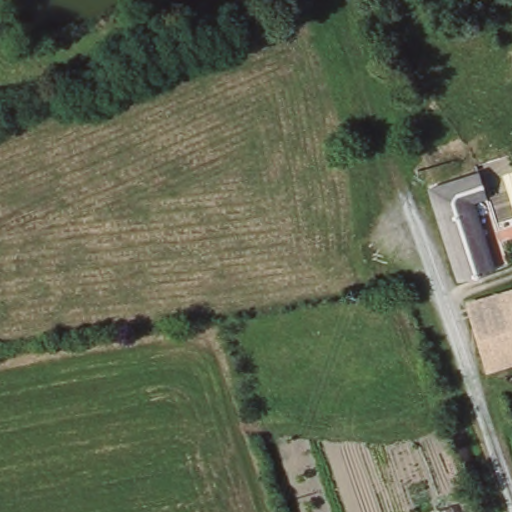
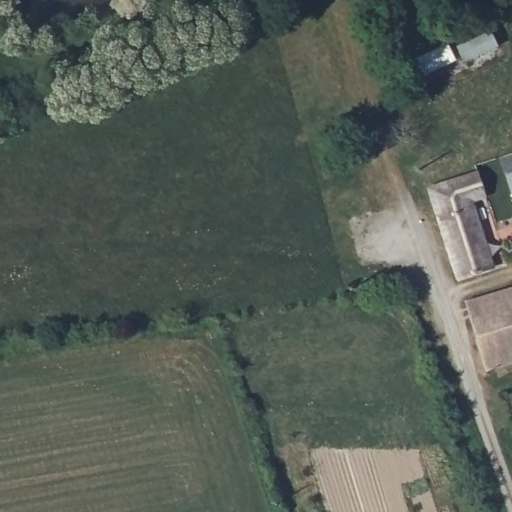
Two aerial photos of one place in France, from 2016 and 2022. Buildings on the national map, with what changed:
unchanged [(507,263),(459,278),(431,189),(478,174),(507,263)]
unchanged [(505,365),(508,375),(497,378),(494,368),(487,371),(467,302),(512,288),(512,363),(505,365)]

